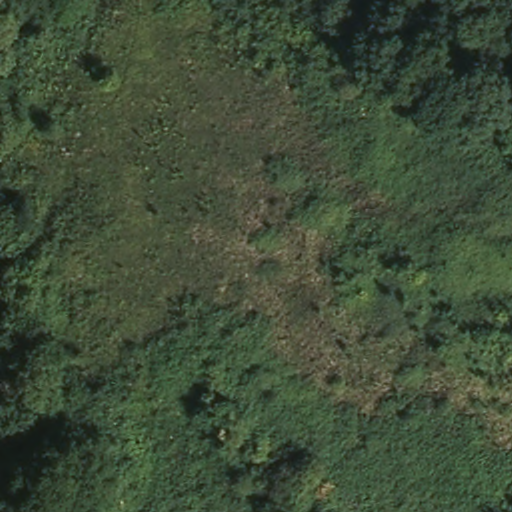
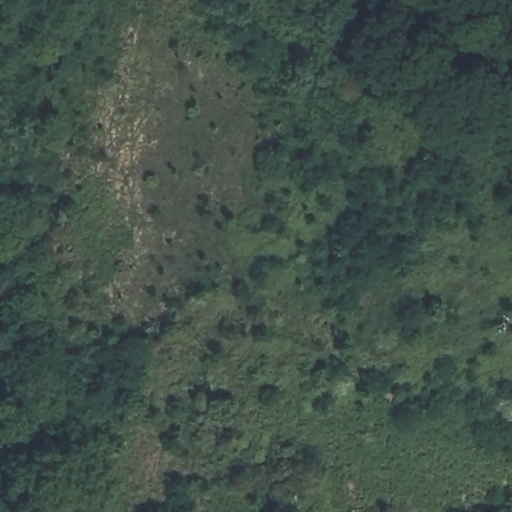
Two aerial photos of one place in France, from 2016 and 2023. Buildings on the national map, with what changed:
[]

